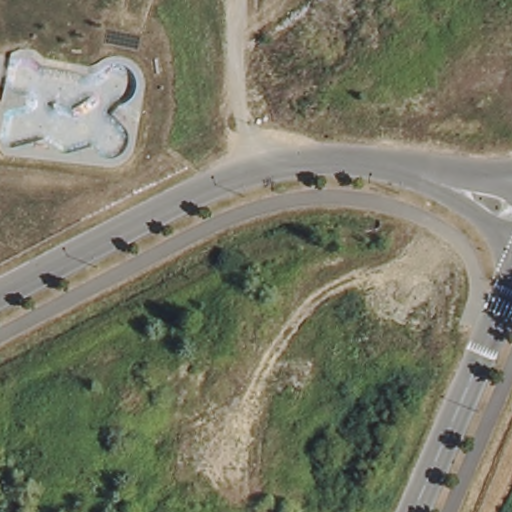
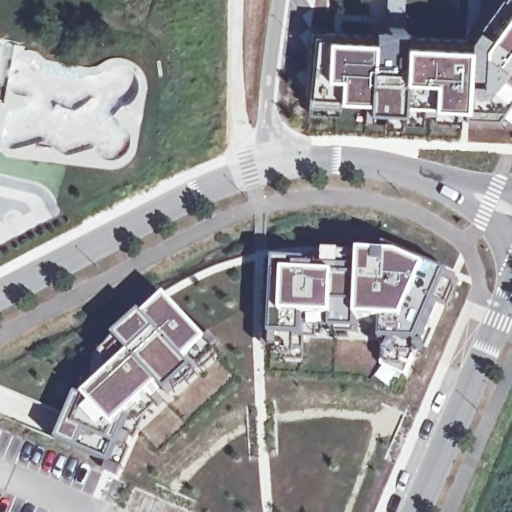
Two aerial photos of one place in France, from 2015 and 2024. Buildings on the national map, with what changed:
new [(493,111),(460,109),(429,104),(401,103),(401,107),(367,105),(367,101),(353,101),(353,104),(306,101),(313,33),(371,36),(373,24),(404,25),(404,38),(466,41),(467,34),(492,0),(512,0),(512,85),(493,111)]
new [(448,280),(458,285),(449,307),(438,303),(419,345),(417,344),(418,356),(385,353),(384,340),(384,325),(361,324),(361,336),(334,334),(334,328),(306,326),(304,339),(297,339),(294,360),(279,358),(279,336),(273,336),(277,264),(309,267),(309,270),(325,270),(327,254),(354,254),(354,251),(392,254),(394,245),(449,270),(448,280)]
new [(178,312),(216,351),(191,371),(197,379),(175,404),(166,395),(127,436),(121,470),(68,451),(89,386),(168,304),(178,312)]
new [(376,512),(337,512),(364,455),(396,473),(376,512)]

